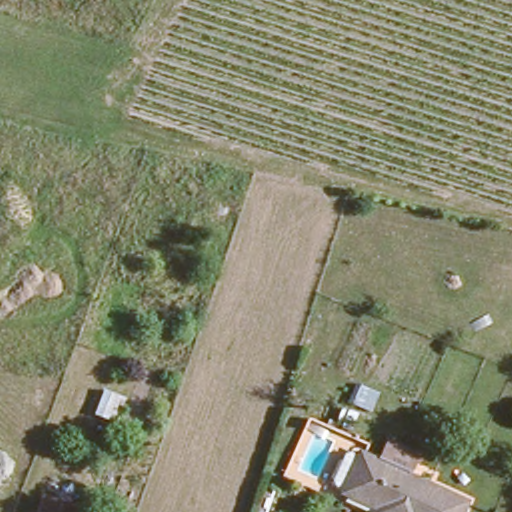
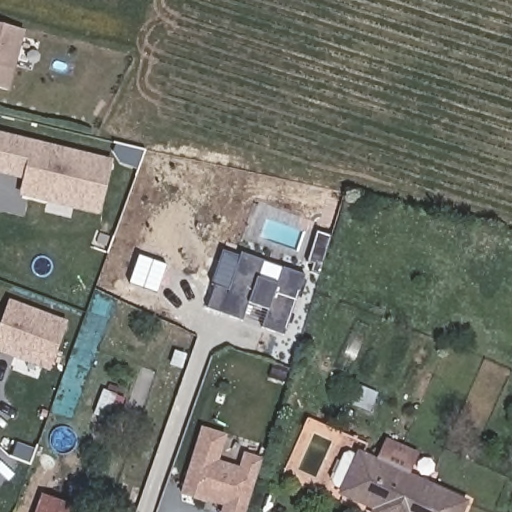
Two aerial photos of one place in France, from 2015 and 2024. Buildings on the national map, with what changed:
new [(0,88),(0,24),(25,30),(9,91),(0,88)]
new [(0,168),(0,133),(113,160),(102,204),(51,192),(50,197),(32,192),(25,191),(29,175),(0,168)]
new [(262,327),(268,310),(249,303),(242,321),(207,309),(215,286),(229,290),(241,252),(264,260),(258,277),(277,283),(282,267),(305,275),(285,335),(262,327)]
new [(12,303),(65,323),(49,367),(0,349),(0,334),(12,303)]
new [(219,460),(239,466),(243,452),(263,457),(247,512),(220,512),(222,506),(207,502),(207,504),(180,496),(202,427),(227,434),(219,460)]
unchanged [(460,493),(452,512),(378,512),(367,507),(372,496),(342,482),(361,446),(460,493)]
unchanged [(40,512),(46,495),(77,503),(100,511),(99,512),(40,512)]

